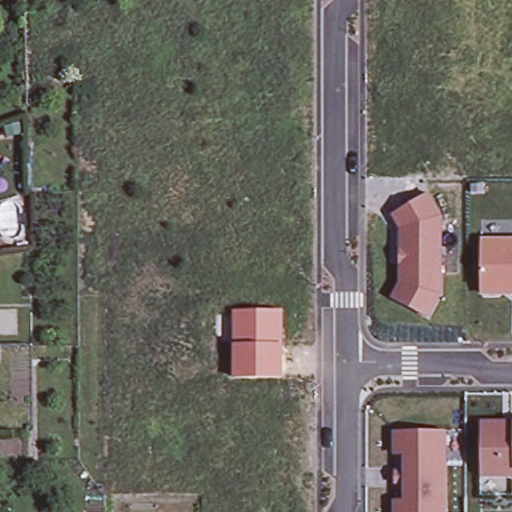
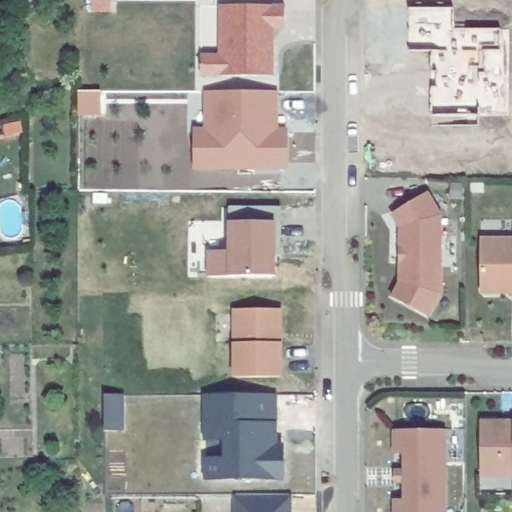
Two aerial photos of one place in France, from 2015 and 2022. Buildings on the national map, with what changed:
new [(223,59),(223,7),(287,8),(287,30),(275,30),(274,48),(274,55),(274,79),(223,79),(203,79),(203,59),(223,59)]
new [(453,9),(452,29),(500,30),(501,52),(483,51),(483,72),(477,72),(479,116),(431,117),(430,51),(408,52),(410,9),(453,9)]
new [(277,92),(279,130),(287,130),(288,168),(194,169),(194,129),(205,129),(204,93),(277,92)]
new [(80,94),(102,94),(102,116),(80,116),(80,94)]
unchanged [(389,300),(397,282),(396,229),(388,211),(428,188),(443,217),(440,288),(427,317),(389,300)]
new [(231,254),(231,210),(282,210),(282,225),(282,258),(277,258),(277,279),(210,279),(210,254),(231,254)]
unchanged [(476,239),(512,239),(512,292),(476,292),(476,287),(476,239)]
unchanged [(283,376),(234,378),(233,312),(283,311),(283,376)]
new [(276,395),(276,444),(282,445),(283,479),(204,478),(205,457),(221,458),(222,440),(203,440),(203,395),(276,395)]
unchanged [(510,475),(476,475),(476,430),(476,422),(509,422),(512,422),(512,467),(510,467),(510,475)]
unchanged [(426,512),(396,512),(396,428),(448,429),(448,511),(426,511),(426,512)]
new [(291,512),(235,512),(235,497),(292,498),(291,512)]

